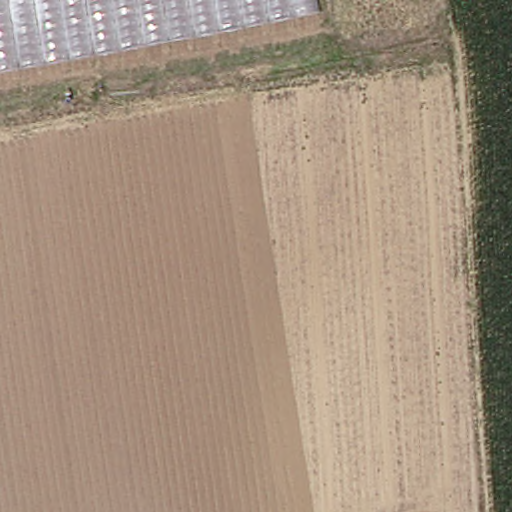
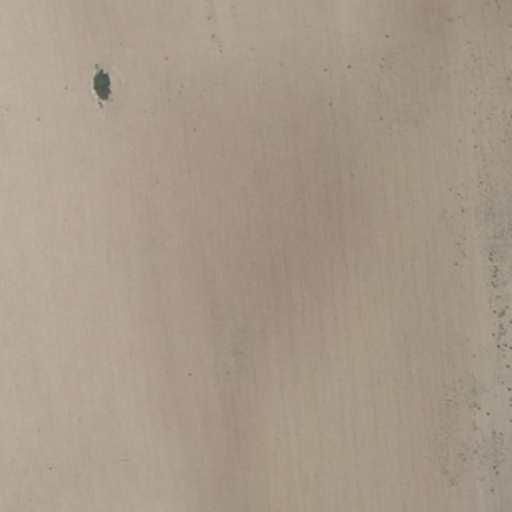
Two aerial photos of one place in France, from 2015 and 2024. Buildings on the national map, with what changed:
demolished [(324,0),(326,10),(0,68),(0,0),(324,0)]

